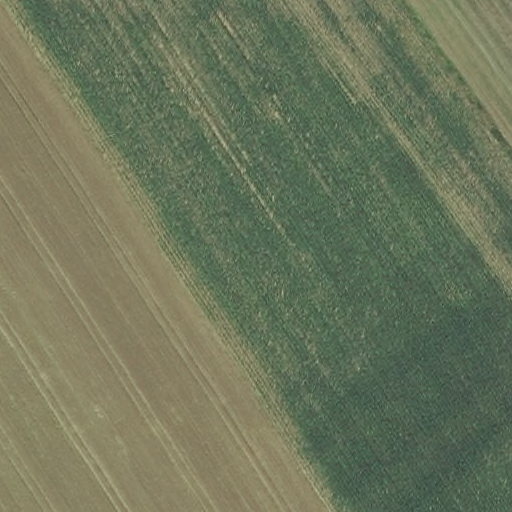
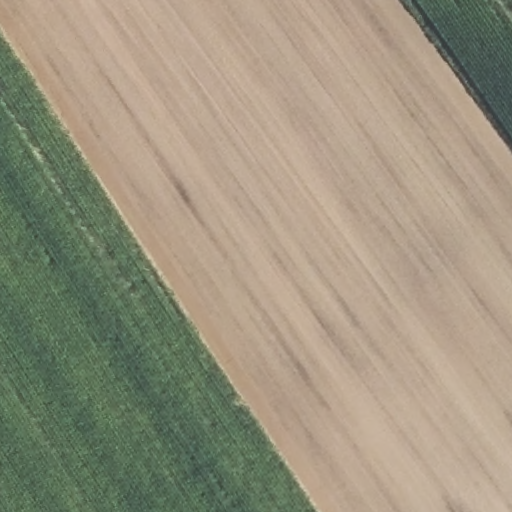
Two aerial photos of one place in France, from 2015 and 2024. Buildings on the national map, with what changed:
[]

